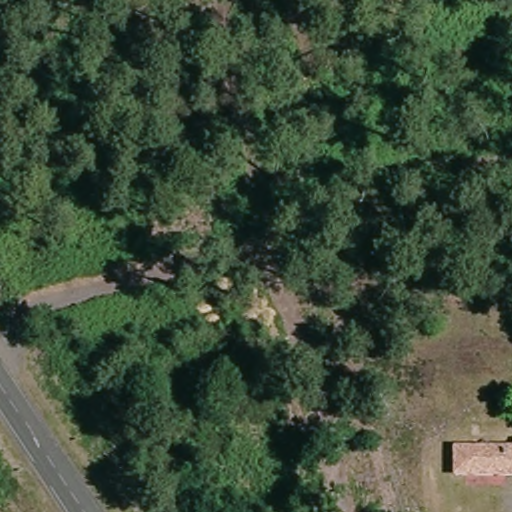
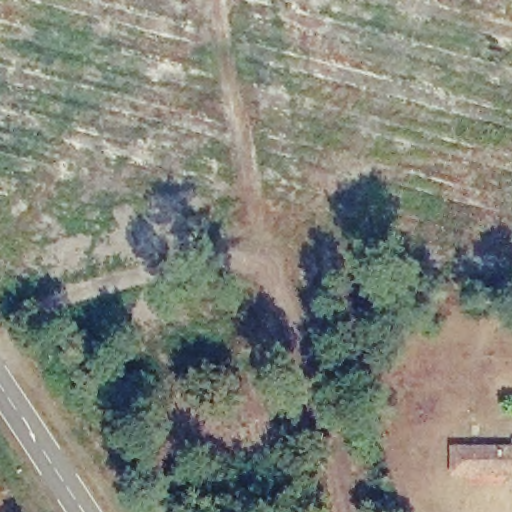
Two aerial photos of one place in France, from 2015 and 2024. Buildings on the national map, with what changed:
unchanged [(456,446),(512,442),(512,475),(458,479),(456,446)]

